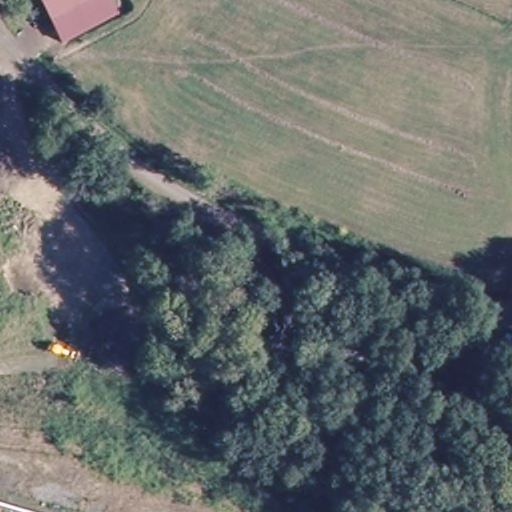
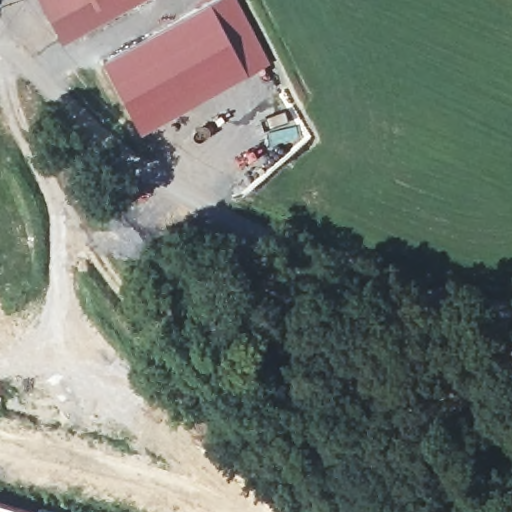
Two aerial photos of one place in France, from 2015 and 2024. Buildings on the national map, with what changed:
unchanged [(119,14),(63,43),(40,0),(112,0),(119,14)]
new [(217,0),(238,0),(272,64),(139,132),(101,60),(217,0)]
new [(119,14),(112,0),(144,0),(119,14)]
demolished [(338,331),(382,374),(352,408),(307,365),(338,331)]
new [(417,370),(406,393),(358,365),(371,346),(417,370)]
unchanged [(0,512),(0,500),(44,512),(0,512)]

